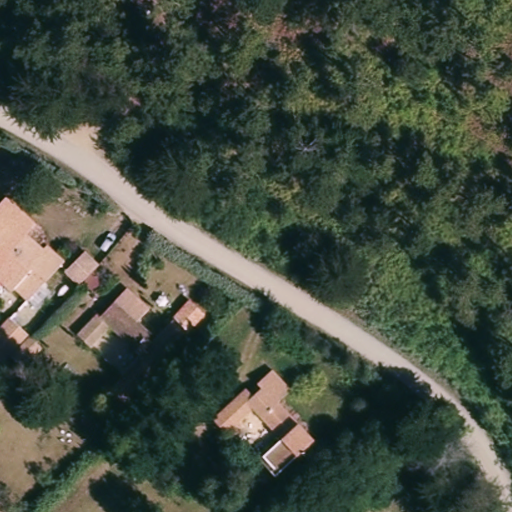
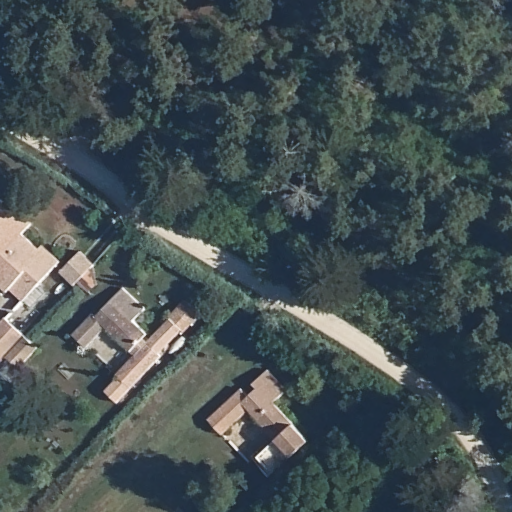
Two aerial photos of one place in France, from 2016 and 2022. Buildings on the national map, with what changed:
unchanged [(15,235),(36,254),(46,245),(60,258),(21,299),(5,285),(9,280),(0,271),(0,196),(27,221),(15,235)]
unchanged [(82,248),(95,259),(76,279),(63,268),(82,248)]
unchanged [(152,330),(148,334),(166,351),(136,383),(122,370),(138,351),(108,325),(91,340),(77,327),(97,307),(101,310),(116,296),(152,330)]
unchanged [(12,359),(2,370),(0,372),(0,331),(12,318),(33,335),(31,338),(44,350),(25,371),(12,359)]
unchanged [(280,384),(269,395),(310,433),(273,472),(256,456),(275,435),(247,410),(222,435),(206,420),(235,386),(243,393),(251,385),(245,380),(258,365),(280,384)]

